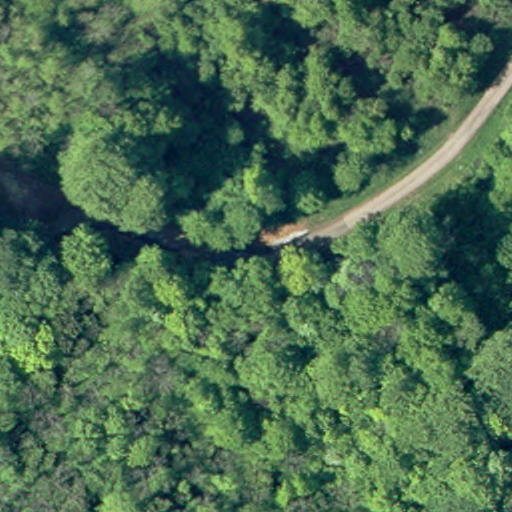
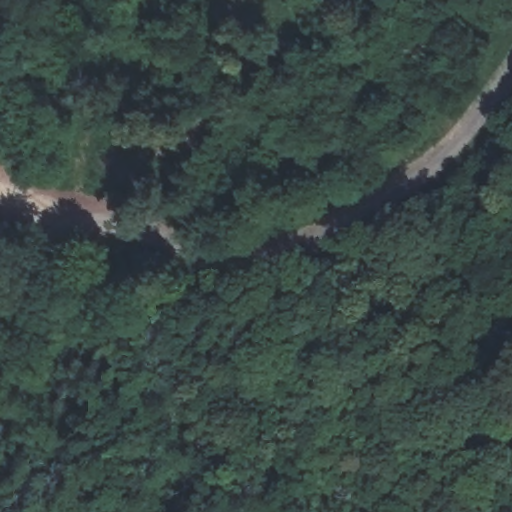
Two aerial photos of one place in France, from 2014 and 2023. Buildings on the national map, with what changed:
unchanged [(302,311),(289,323),(266,309),(275,293),(302,311)]

